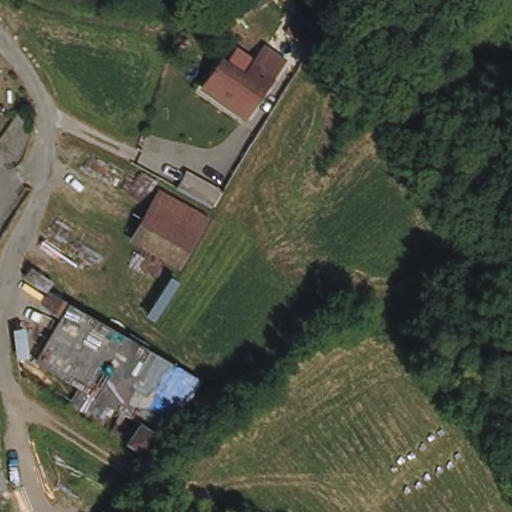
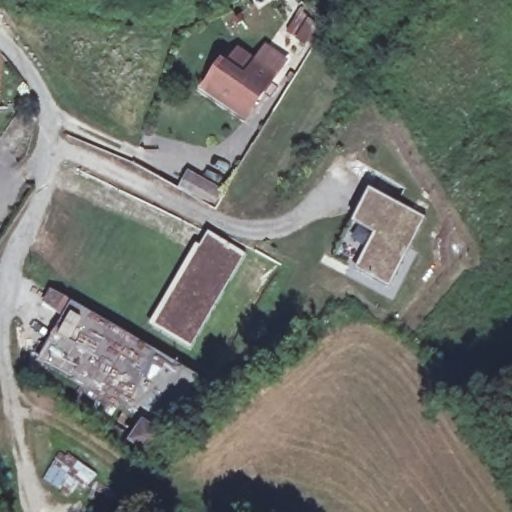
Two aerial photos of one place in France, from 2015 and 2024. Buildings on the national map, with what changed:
unchanged [(330,25),(318,40),(305,28),(320,10),(330,25)]
demolished [(212,17),(222,35),(200,47),(190,31),(212,17)]
unchanged [(212,80),(223,61),(246,74),(255,58),(265,41),(287,54),(275,69),(252,114),(235,104),(207,89),(212,80)]
demolished [(185,190),(192,174),(222,187),(216,202),(185,190)]
demolished [(207,211),(198,230),(150,208),(160,189),(207,211)]
new [(353,222),(370,190),(425,219),(390,286),(356,268),(375,234),(353,222)]
new [(209,234),(245,255),(192,347),(155,326),(209,234)]
unchanged [(206,373),(175,435),(50,368),(74,320),(46,305),(52,295),(70,305),(73,302),(206,373)]
unchanged [(164,437),(152,454),(135,443),(147,426),(164,437)]

